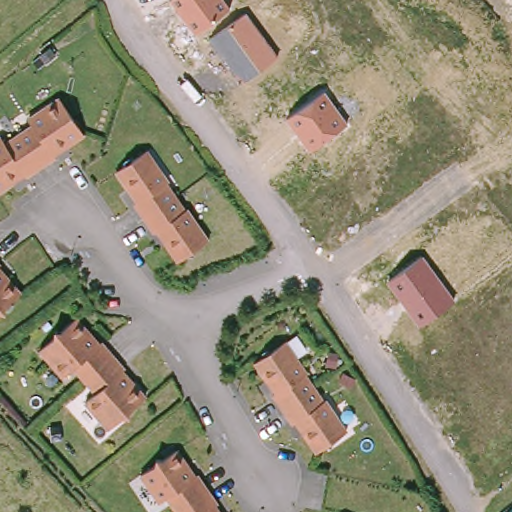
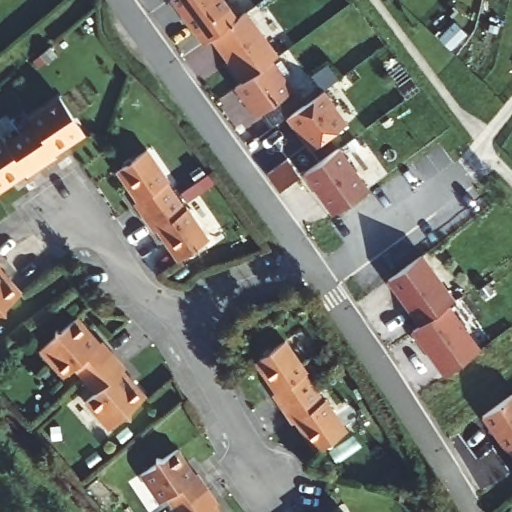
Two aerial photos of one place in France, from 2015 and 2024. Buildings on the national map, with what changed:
unchanged [(202,44),(195,35),(170,0),(223,0),(229,9),(237,20),(209,39),(202,44)]
unchanged [(242,82),(209,39),(246,13),(277,57),(242,82)]
new [(297,90),(260,116),(240,87),(276,61),(297,90)]
unchanged [(348,124),(310,151),(287,119),(325,91),(348,124)]
unchanged [(5,145),(32,125),(27,119),(58,97),(84,135),(67,146),(64,142),(51,151),(55,156),(27,176),(22,170),(10,179),(12,182),(0,191),(0,138),(5,145)]
unchanged [(142,199),(133,185),(128,189),(117,171),(148,151),(168,181),(167,183),(186,210),(187,210),(208,240),(178,260),(167,244),(170,241),(162,227),(154,233),(135,204),(142,199)]
new [(337,154),(361,190),(327,213),(302,176),(337,154)]
unchanged [(455,300),(420,326),(387,283),(423,256),(455,300)]
unchanged [(5,276),(8,273),(21,287),(6,300),(7,307),(0,306),(0,271),(5,276)]
new [(447,305),(482,348),(445,376),(411,333),(420,326),(447,305)]
unchanged [(77,313),(88,327),(85,330),(95,342),(101,337),(124,364),(119,368),(129,380),(133,376),(145,391),(130,405),(130,411),(124,409),(108,423),(85,395),(95,387),(73,362),(63,370),(40,343),(77,313)]
unchanged [(282,390),(272,377),(267,380),(255,362),(287,341),(308,372),(305,375),(325,401),(327,400),(348,430),(317,451),(305,435),(310,431),(302,420),(294,425),(273,396),(282,390)]
new [(473,416),(510,393),(512,396),(512,447),(501,456),(473,416)]
unchanged [(162,455),(165,456),(182,445),(192,460),(188,462),(196,474),(202,470),(222,498),(217,503),(223,512),(186,512),(172,491),(165,496),(147,470),(160,460),(162,455)]
demolished [(512,512),(507,512),(512,505),(512,512)]

